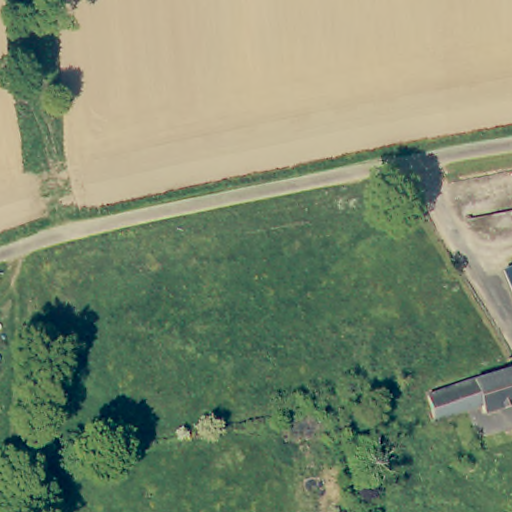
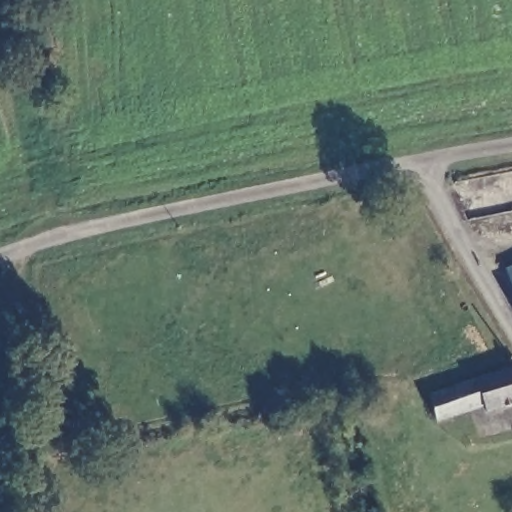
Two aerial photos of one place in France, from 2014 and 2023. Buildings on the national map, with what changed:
unchanged [(512,267),(512,305),(500,272),(512,267)]
unchanged [(478,406),(430,416),(424,388),(512,373),(512,412),(481,418),(478,406)]

